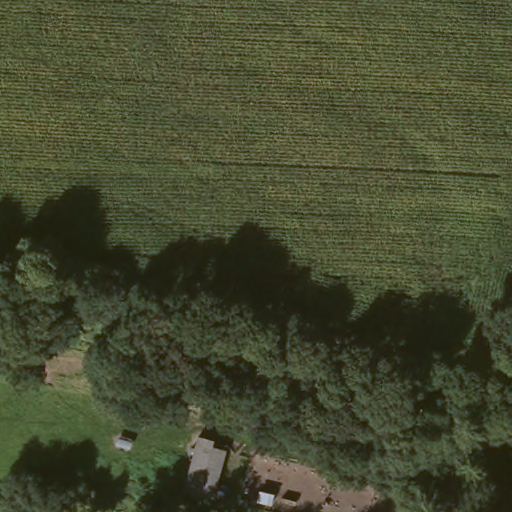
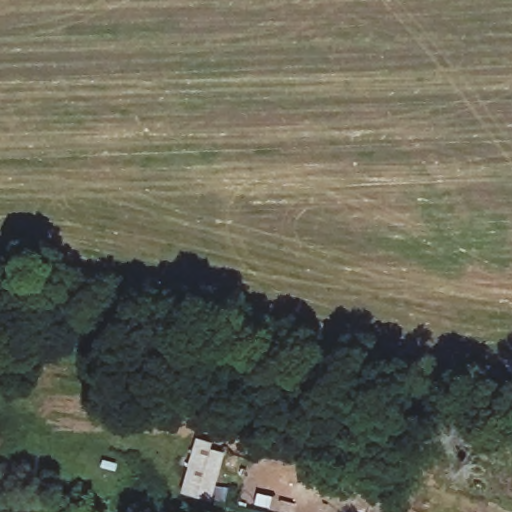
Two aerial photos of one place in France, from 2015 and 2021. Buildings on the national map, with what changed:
unchanged [(219,438),(218,445),(234,450),(219,498),(186,487),(200,435),(219,438)]

